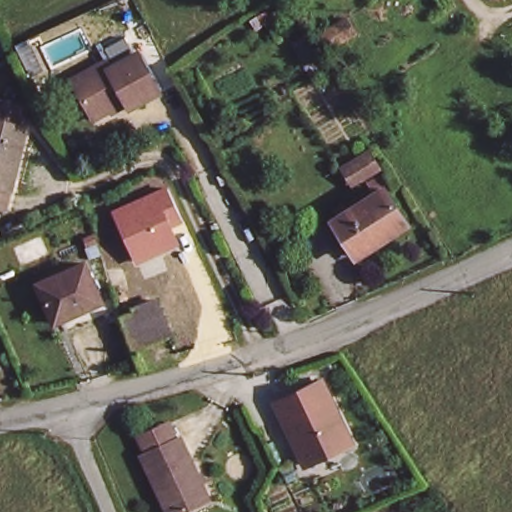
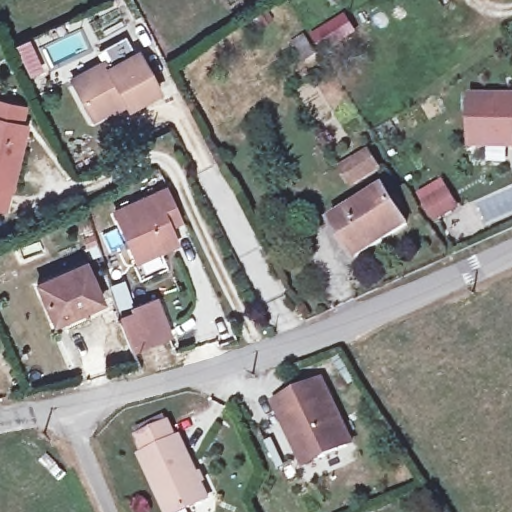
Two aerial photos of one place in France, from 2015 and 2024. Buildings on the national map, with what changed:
unchanged [(347,16),(356,31),(334,45),(325,31),(347,16)]
unchanged [(110,57),(113,62),(141,45),(165,84),(134,101),(130,95),(99,114),(76,77),(110,57)]
new [(469,149),(469,95),(512,94),(512,149),(469,149)]
unchanged [(0,207),(0,119),(5,100),(37,109),(32,127),(37,129),(13,210),(0,207)]
unchanged [(388,170),(354,186),(345,166),(377,145),(388,170)]
unchanged [(165,185),(182,223),(171,229),(179,245),(136,264),(112,210),(165,185)]
unchanged [(389,187),(414,224),(365,257),(341,221),(389,187)]
unchanged [(93,262),(109,301),(59,322),(43,284),(93,262)]
unchanged [(138,335),(128,305),(143,300),(141,293),(160,285),(169,310),(173,322),(138,335)]
unchanged [(316,377),(346,440),(302,461),(287,430),(285,432),(269,399),(316,377)]
unchanged [(170,425),(178,441),(182,440),(211,501),(188,512),(168,512),(143,458),(147,456),(139,439),(170,425)]

